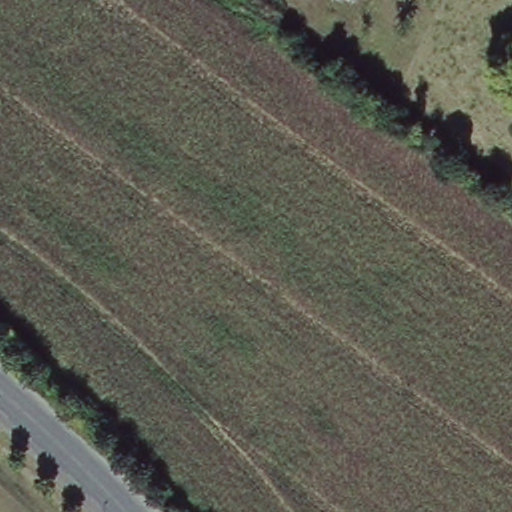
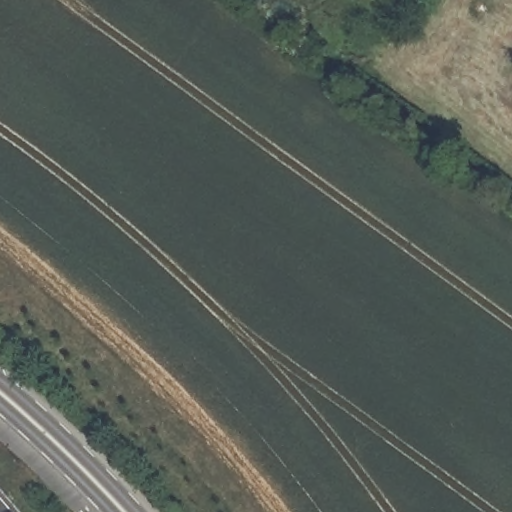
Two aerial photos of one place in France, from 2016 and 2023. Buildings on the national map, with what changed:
[]

